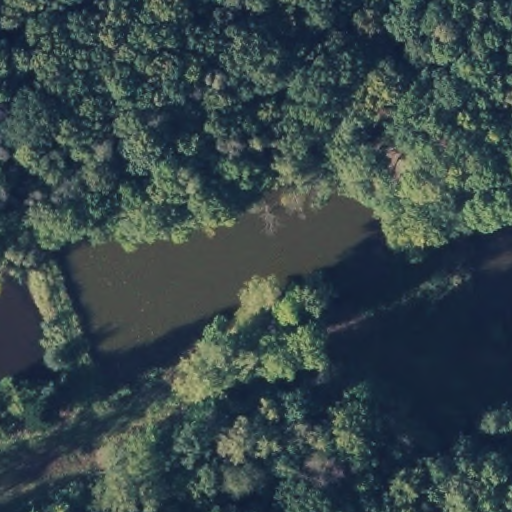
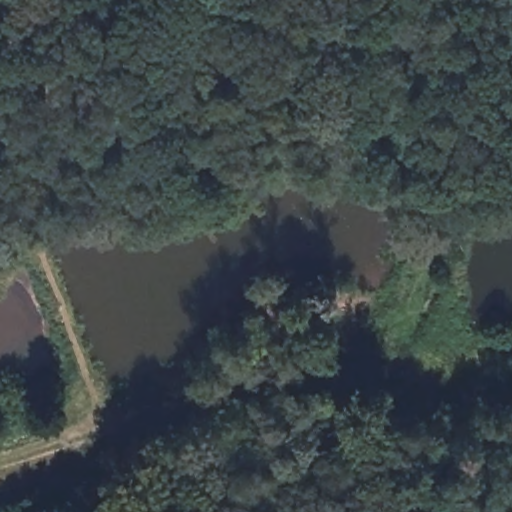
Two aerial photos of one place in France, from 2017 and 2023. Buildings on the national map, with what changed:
unchanged [(376,162),(388,191),(375,199),(359,171),(376,162)]

